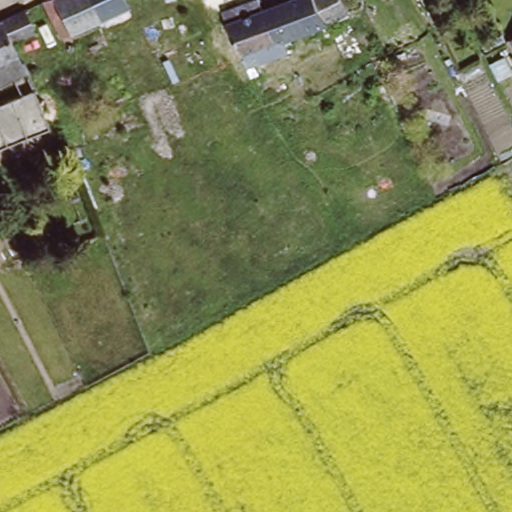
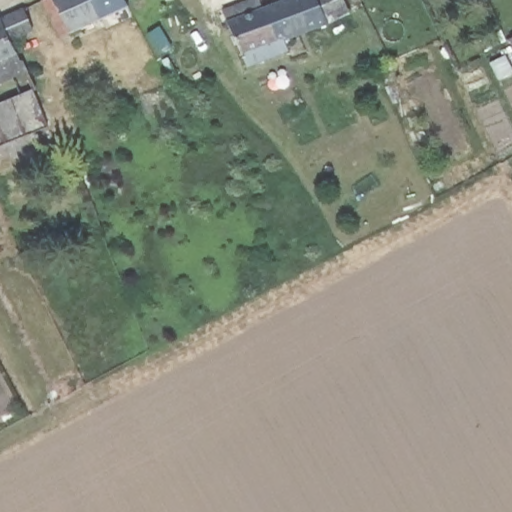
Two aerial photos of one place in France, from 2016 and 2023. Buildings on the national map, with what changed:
unchanged [(127,2),(59,33),(43,0),(126,0),(127,2)]
unchanged [(347,7),(240,50),(222,7),(241,0),(257,0),(258,3),(267,0),(344,0),(347,7)]
unchanged [(0,19),(24,8),(35,29),(11,42),(25,70),(0,81),(0,19)]
unchanged [(507,34),(512,32),(512,43),(507,34)]
unchanged [(178,81),(168,84),(156,62),(166,57),(178,81)]
unchanged [(42,119),(46,126),(0,146),(0,100),(16,93),(12,83),(28,76),(32,86),(30,87),(36,101),(44,98),(47,111),(42,119)]

